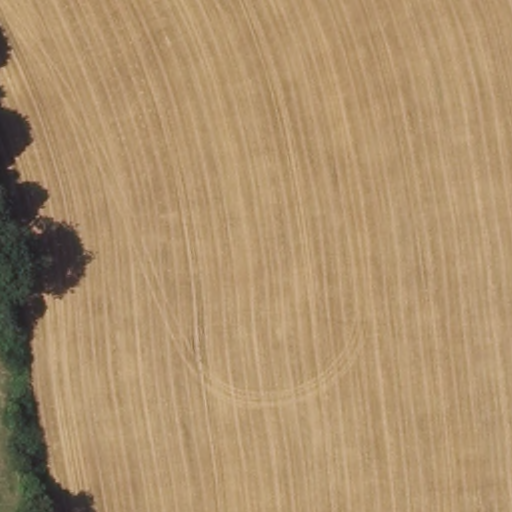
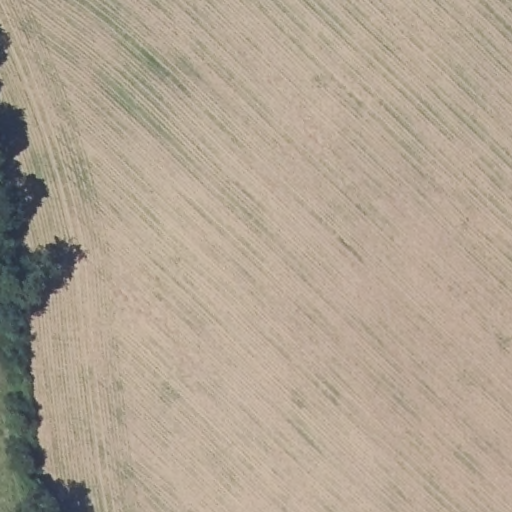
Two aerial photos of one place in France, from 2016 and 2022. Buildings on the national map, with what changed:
[]

